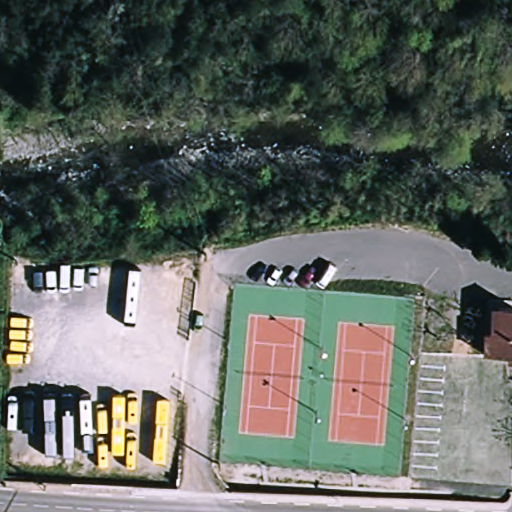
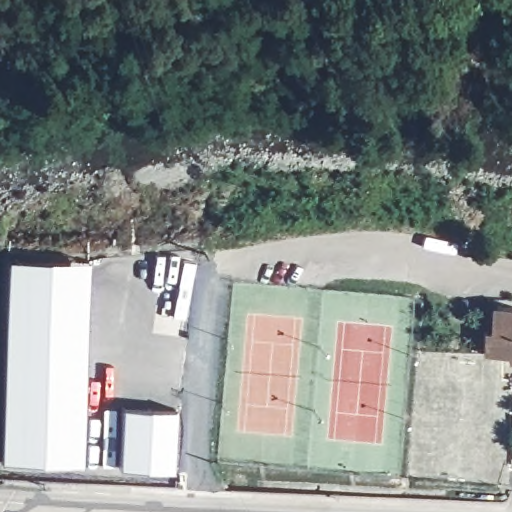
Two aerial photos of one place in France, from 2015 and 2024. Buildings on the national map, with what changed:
new [(80,465),(2,463),(6,261),(85,262),(80,465)]
unchanged [(504,362),(504,358),(483,357),(482,331),(491,332),(491,304),(512,304),(512,362),(504,362)]
new [(170,470),(120,469),(121,409),(173,411),(170,470)]

